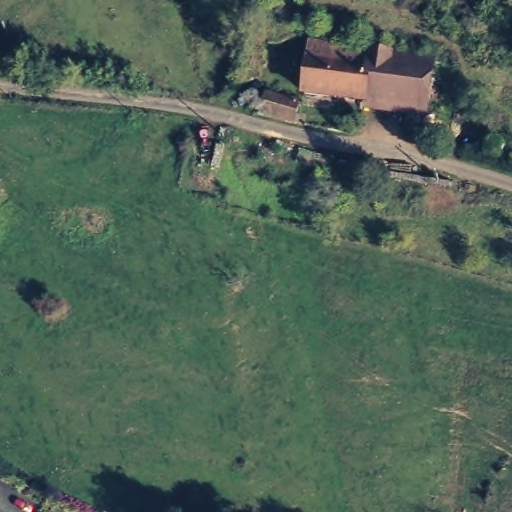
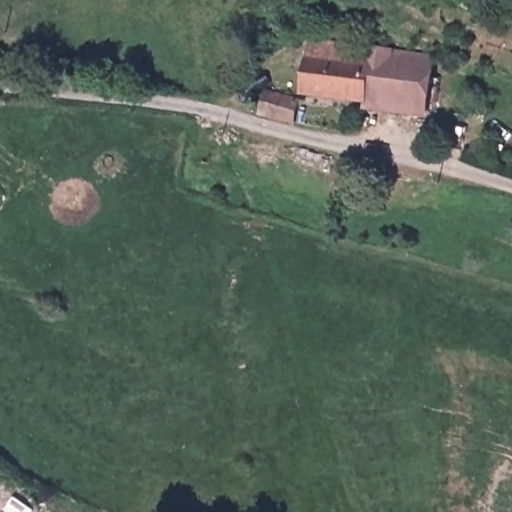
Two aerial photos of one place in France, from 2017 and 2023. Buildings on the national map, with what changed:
unchanged [(425,107),(414,106),(305,97),(308,46),(368,52),(368,66),(418,70),(426,71),(425,107)]
unchanged [(222,75),(261,81),(258,103),(220,97),(222,75)]

